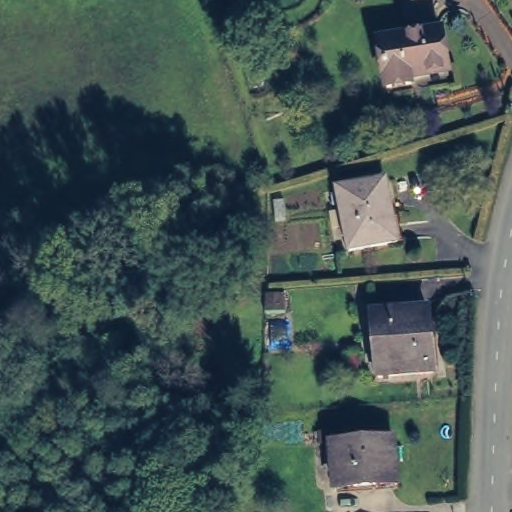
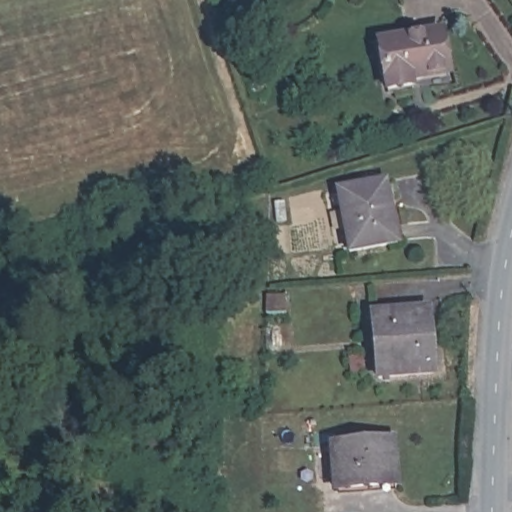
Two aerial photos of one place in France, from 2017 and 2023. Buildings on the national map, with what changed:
unchanged [(447,69),(409,76),(412,81),(385,85),(377,39),(441,26),(447,69)]
unchanged [(397,243),(349,252),(336,190),(384,181),(397,243)]
unchanged [(286,294),(285,314),(265,314),(265,296),(266,294),(284,293),(286,294)]
unchanged [(438,373),(383,378),(377,313),(432,309),(438,373)]
unchanged [(324,451),(324,437),(339,436),(340,449),(398,445),(402,489),(340,494),(336,451),(324,451)]

